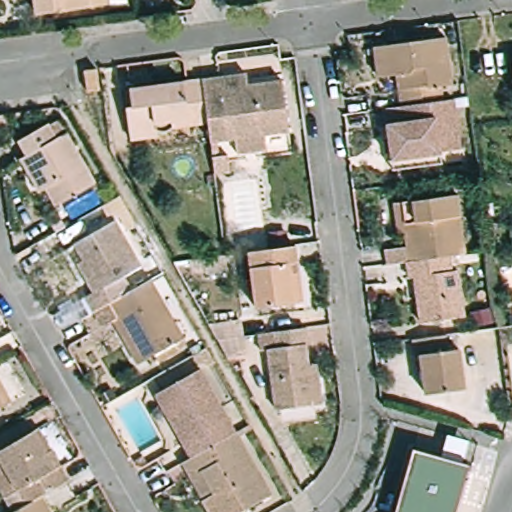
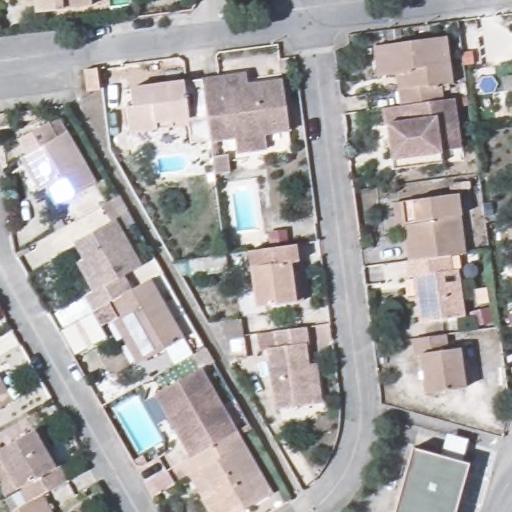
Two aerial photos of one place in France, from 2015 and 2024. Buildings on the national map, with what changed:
unchanged [(37,14),(34,0),(92,0),(93,6),(37,14)]
unchanged [(402,88),(407,88),(406,74),(384,76),(380,47),(449,39),(454,85),(442,86),(444,98),(403,103),(402,88)]
unchanged [(241,150),(240,138),(211,141),(208,117),(202,74),(223,71),(249,68),(250,83),(279,79),(285,132),(265,134),(266,148),(241,150)]
unchanged [(99,96),(84,98),(80,74),(96,72),(99,96)]
unchanged [(166,121),(165,109),(155,110),(156,123),(126,126),(123,105),(128,104),(125,83),(202,74),(208,117),(166,121)]
unchanged [(386,169),(385,158),(382,137),(380,124),(376,107),(403,103),(444,98),(453,96),(460,145),(440,149),(440,150),(441,160),(386,169)]
unchanged [(39,123),(49,139),(54,136),(62,131),(75,151),(94,183),(56,203),(16,136),(39,123)]
unchanged [(213,159),(235,158),(237,176),(215,178),(214,171),(213,159)]
unchanged [(396,203),(456,194),(463,251),(447,254),(404,259),(396,203)]
unchanged [(84,297),(100,288),(74,242),(114,219),(139,266),(122,275),(130,291),(93,312),(84,297)]
unchanged [(303,242),(306,262),(297,263),(302,301),(259,307),(252,250),(296,243),(303,242)]
unchanged [(449,270),(456,269),(461,312),(420,317),(415,277),(407,278),(404,259),(447,254),(449,270)]
unchanged [(117,323),(104,330),(93,312),(130,291),(151,279),(185,337),(177,342),(182,349),(165,359),(160,351),(150,357),(140,362),(117,323)]
unchanged [(310,346),(303,347),(312,404),(277,409),(269,351),(286,348),(283,329),(307,325),(310,346)]
unchanged [(464,391),(425,396),(421,360),(412,361),(409,340),(457,334),(464,391)]
unchanged [(205,368),(241,431),(240,432),(189,459),(153,397),(205,368)]
unchanged [(6,399),(0,402),(0,388),(6,399)]
unchanged [(189,459),(240,432),(271,483),(246,496),(252,508),(244,512),(208,512),(202,501),(210,497),(199,476),(190,481),(181,464),(189,459)]
unchanged [(0,488),(0,446),(19,437),(30,457),(37,454),(55,483),(41,492),(12,508),(0,488)]
unchanged [(395,505),(410,448),(467,464),(453,512),(393,512),(395,505)]
unchanged [(50,508),(44,512),(5,512),(12,508),(41,492),(50,508)]

